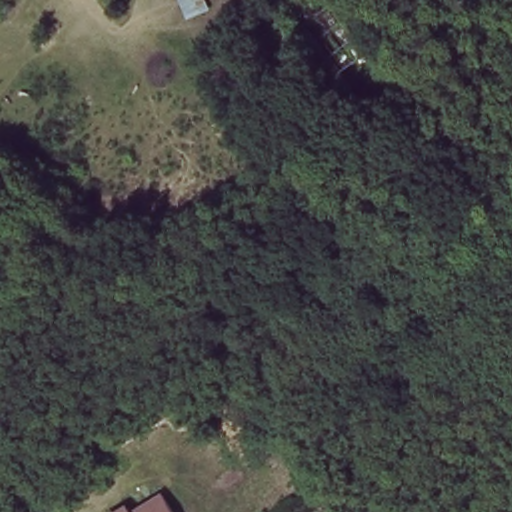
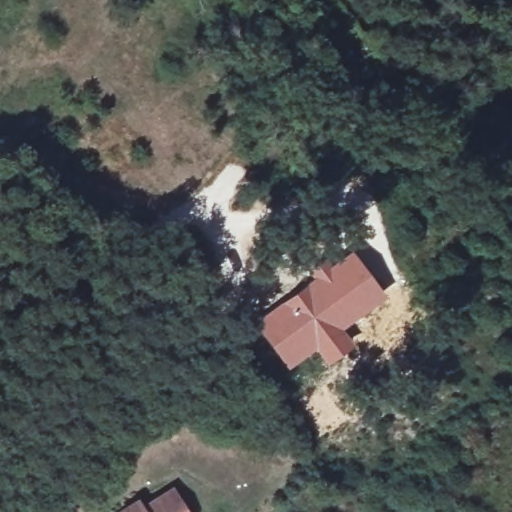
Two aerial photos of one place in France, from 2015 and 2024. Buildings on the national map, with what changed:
new [(311,277),(306,269),(327,253),(333,261),(350,248),(383,292),(342,328),(353,342),(326,365),(315,350),(288,370),(252,323),(311,277)]
unchanged [(114,512),(114,510),(136,494),(142,503),(170,487),(183,512),(114,512)]

